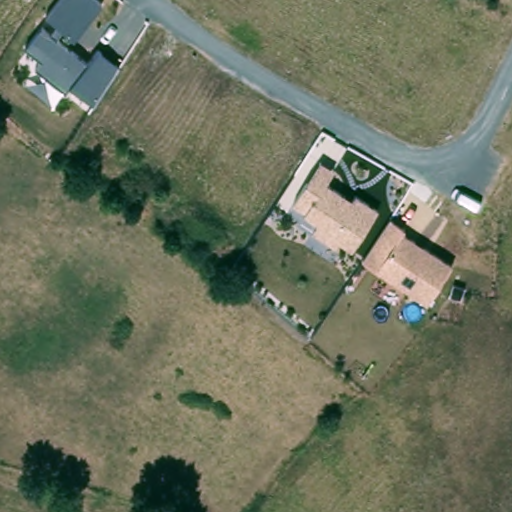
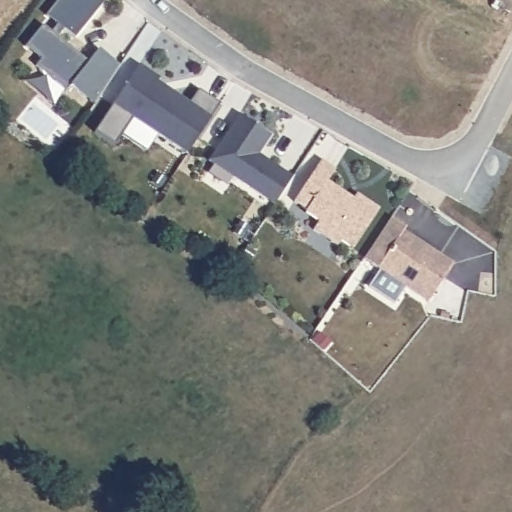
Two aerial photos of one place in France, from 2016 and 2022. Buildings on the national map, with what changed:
unchanged [(93,104),(68,87),(65,91),(35,67),(41,61),(25,48),(43,26),(50,32),(56,24),(47,16),(59,0),(101,0),(104,2),(68,46),(88,62),(98,50),(119,65),(93,104)]
new [(131,119),(113,146),(94,132),(139,67),(159,81),(157,84),(189,104),(198,91),(219,105),(186,154),(131,119)]
new [(207,162),(238,116),(270,136),(258,155),(291,177),(274,205),(207,162)]
unchanged [(351,250),(339,242),(335,247),(310,231),(315,225),(302,216),(304,212),(293,205),(320,162),(335,171),(328,182),(354,200),(357,195),(378,209),(351,250)]
unchanged [(406,228),(403,234),(451,264),(426,303),(360,264),(387,219),(406,228)]

